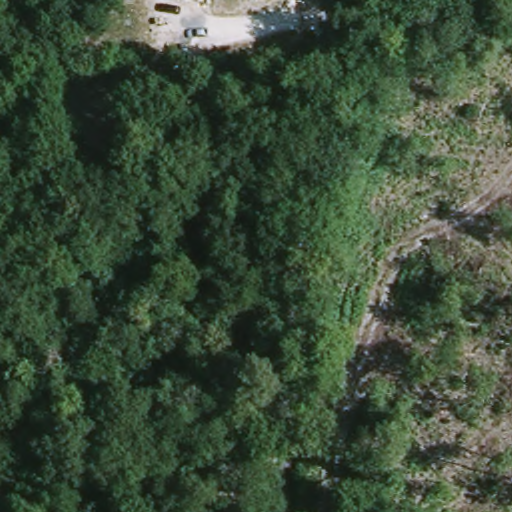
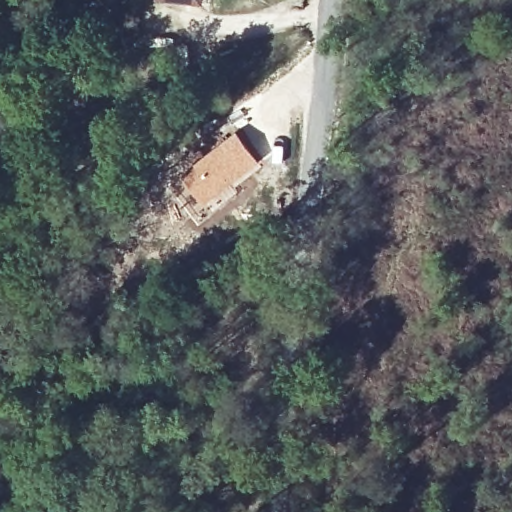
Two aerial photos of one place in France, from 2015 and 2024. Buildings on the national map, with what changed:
new [(235,129),(260,164),(204,206),(178,174),(235,129)]

